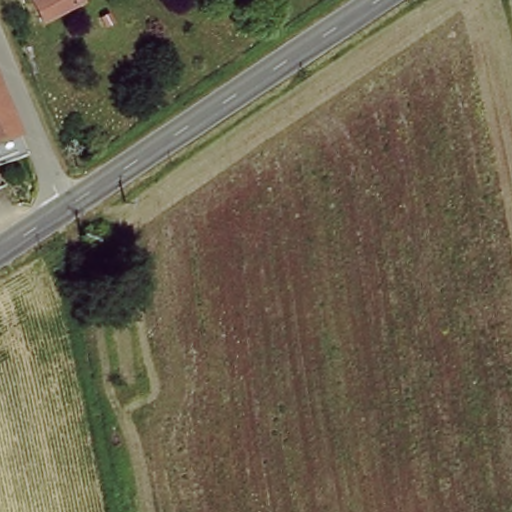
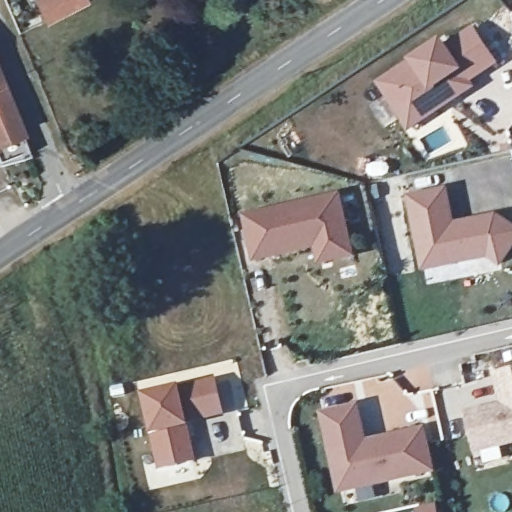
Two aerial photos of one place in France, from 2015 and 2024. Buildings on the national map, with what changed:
unchanged [(87,8),(46,26),(35,3),(40,0),(83,0),(87,8)]
new [(412,63),(445,40),(449,46),(475,28),(502,64),(475,85),(478,91),(412,135),(378,85),(412,63)]
unchanged [(0,167),(0,85),(29,155),(0,167)]
new [(446,190),(452,226),(495,218),(512,228),(512,253),(503,268),(494,271),(493,263),(419,278),(405,197),(446,190)]
new [(340,200),(349,242),(256,263),(247,221),(340,200)]
new [(321,266),(317,249),(349,242),(353,259),(321,266)]
new [(477,454),(468,418),(504,409),(496,379),(512,375),(512,446),(477,454)]
new [(216,380),(224,417),(189,426),(180,387),(216,380)]
new [(180,387),(189,426),(196,463),(158,472),(140,397),(180,387)]
new [(332,456),(324,418),(358,410),(367,452),(375,450),(374,445),(424,434),(433,474),(355,492),(341,495),(332,456)]
new [(374,445),(375,450),(367,452),(365,447),(374,445)]

